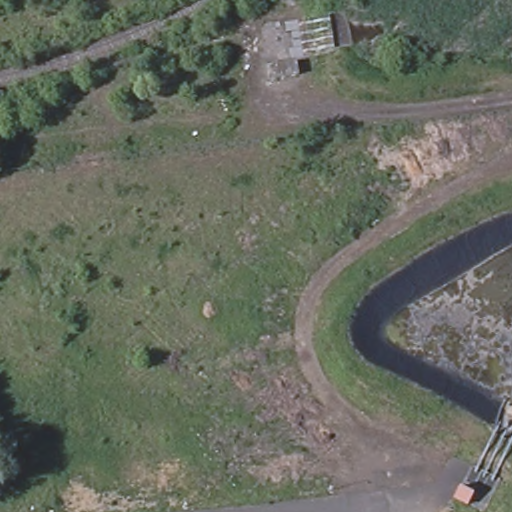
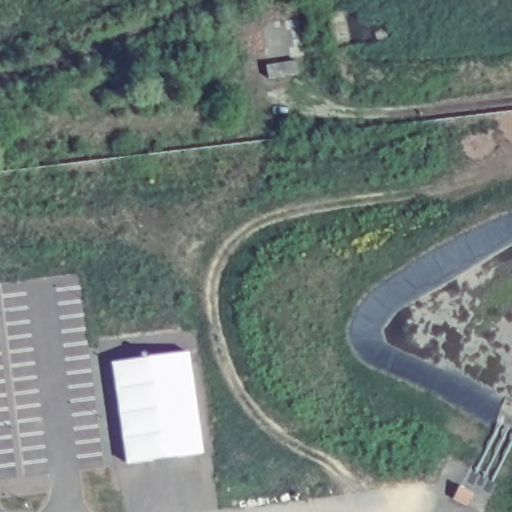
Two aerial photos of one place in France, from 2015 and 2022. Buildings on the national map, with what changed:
unchanged [(331,53),(301,57),(296,27),(326,21),(331,53)]
unchanged [(294,86),(268,91),(266,69),(293,65),(294,86)]
new [(127,461),(113,363),(189,353),(203,451),(127,461)]

